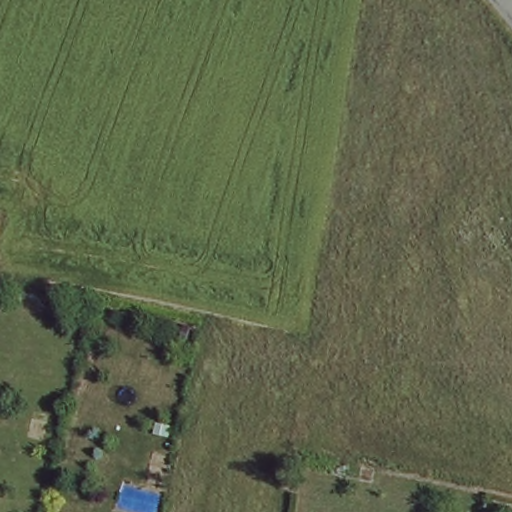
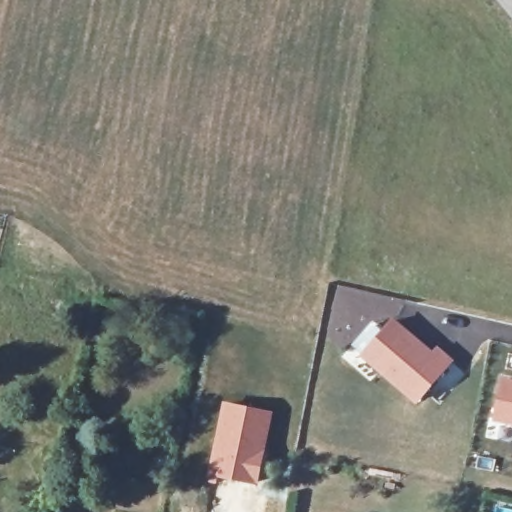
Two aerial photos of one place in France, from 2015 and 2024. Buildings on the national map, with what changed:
new [(372,320),(381,327),(391,316),(432,349),(437,344),(455,359),(415,405),(349,347),(372,320)]
new [(494,422),(503,377),(512,378),(512,425),(494,422)]
new [(221,400),(274,411),(258,485),(206,475),(221,400)]

